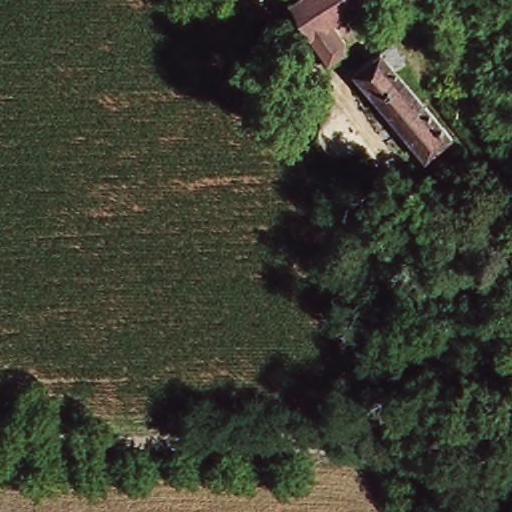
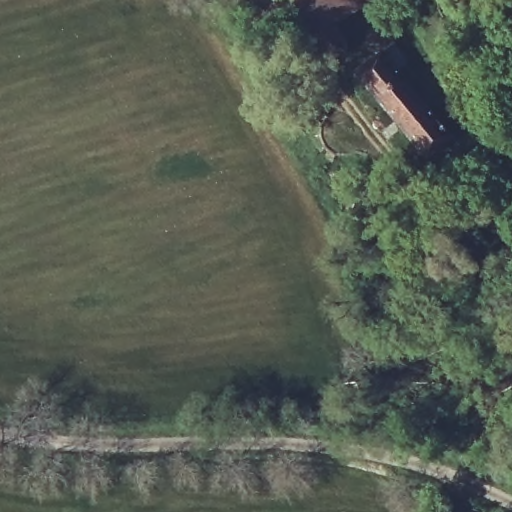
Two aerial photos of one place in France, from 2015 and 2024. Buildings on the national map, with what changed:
unchanged [(334,50),(319,60),(279,2),(283,0),(360,0),(361,2),(326,23),(336,39),(334,50)]
unchanged [(346,72),(383,43),(395,64),(386,71),(437,136),(416,156),(346,72)]

